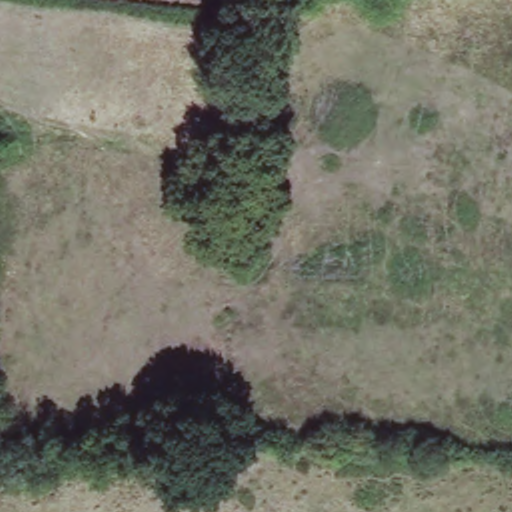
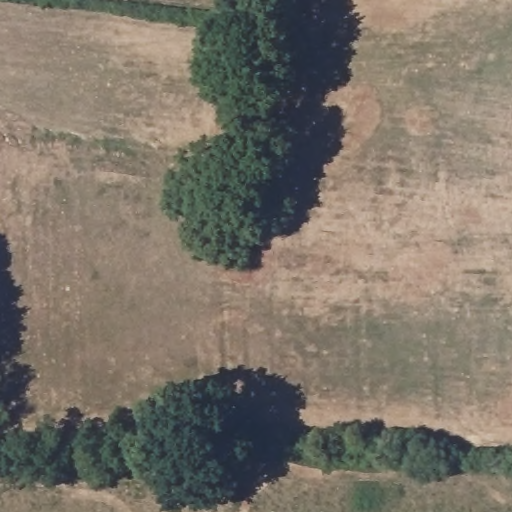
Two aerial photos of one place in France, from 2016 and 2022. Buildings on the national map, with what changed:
[]

